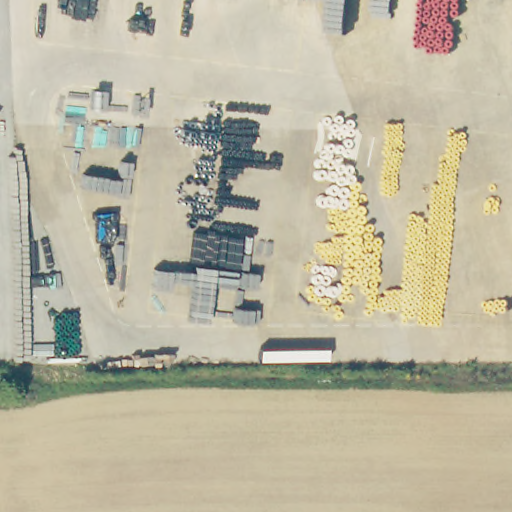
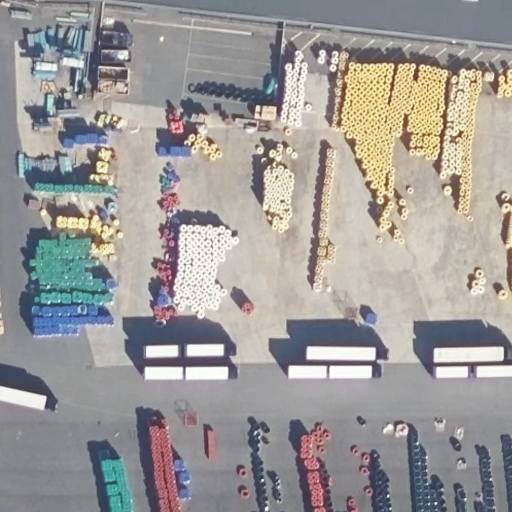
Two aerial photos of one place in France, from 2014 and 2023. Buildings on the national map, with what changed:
new [(98,0),(512,0),(512,46),(98,0)]

